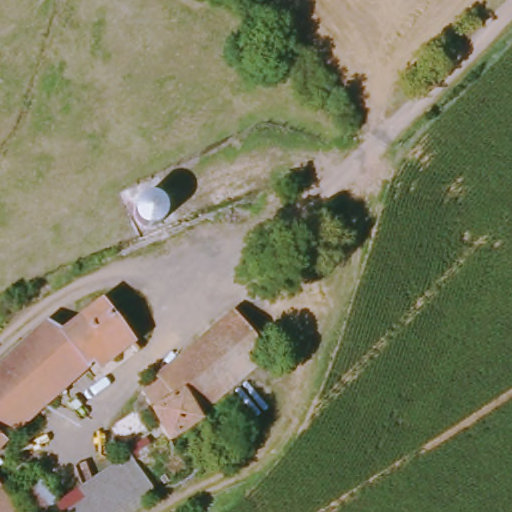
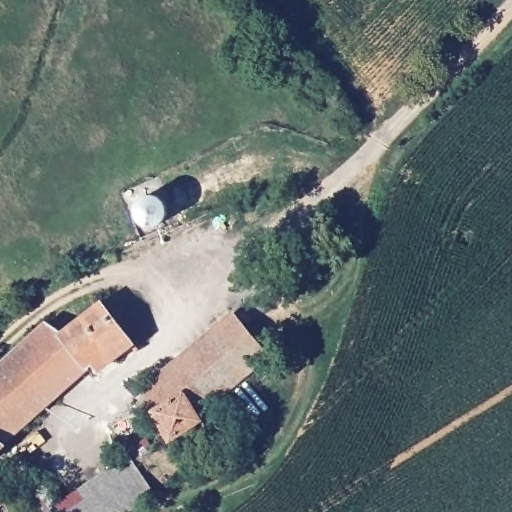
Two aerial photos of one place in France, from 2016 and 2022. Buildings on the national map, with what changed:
unchanged [(74,378),(27,418),(0,444),(0,359),(37,327),(57,335),(98,307),(125,347),(82,380),(74,378)]
unchanged [(228,320),(258,357),(188,418),(172,396),(163,402),(150,383),(228,320)]
unchanged [(163,402),(172,396),(188,418),(192,424),(165,442),(131,396),(148,381),(150,383),(163,402)]
unchanged [(70,504),(61,494),(121,454),(151,498),(129,512),(58,512),(68,506),(70,504)]
unchanged [(43,473),(61,494),(70,504),(68,506),(58,512),(0,512),(0,500),(3,503),(43,473)]

